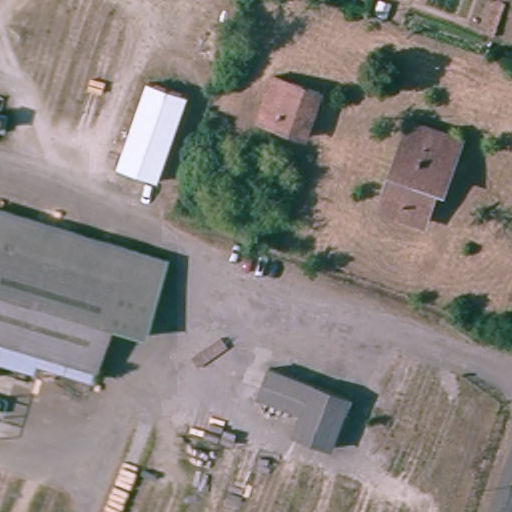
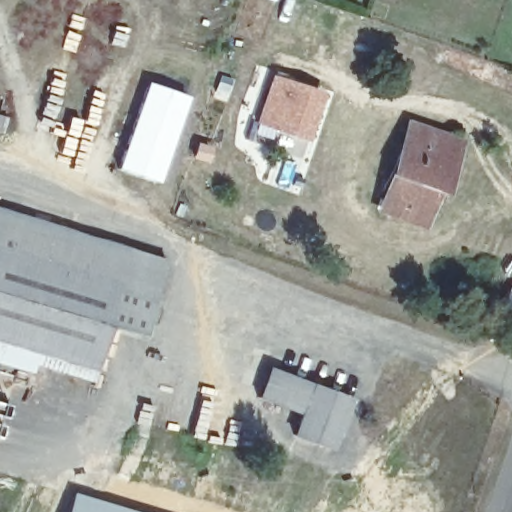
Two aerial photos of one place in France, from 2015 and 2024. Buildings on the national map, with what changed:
unchanged [(311,136),(260,119),(274,75),(325,92),(311,136)]
unchanged [(163,181),(124,169),(150,81),(189,92),(163,181)]
unchanged [(451,192),(440,188),(428,224),(386,211),(414,128),(467,145),(462,162),(451,192)]
unchanged [(144,338),(109,328),(96,371),(92,383),(34,365),(32,373),(0,364),(0,207),(167,259),(144,338)]
unchanged [(292,437),(301,413),(261,400),(271,367),(357,398),(335,450),(292,437)]
new [(142,512),(66,512),(72,491),(142,512)]

